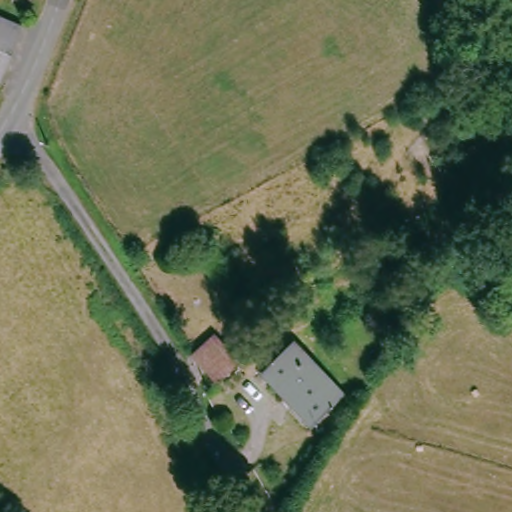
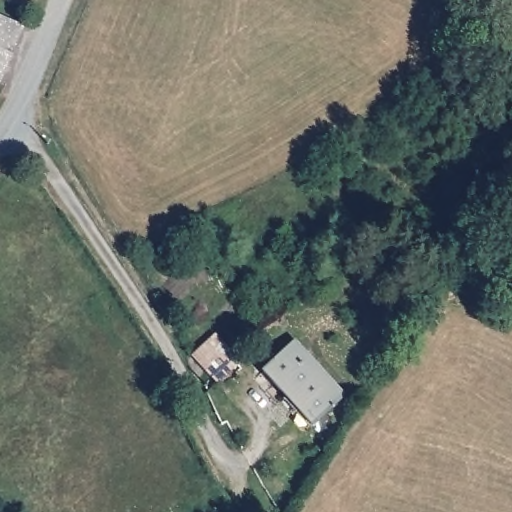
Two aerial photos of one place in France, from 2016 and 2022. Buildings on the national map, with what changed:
unchanged [(17,27),(0,73),(0,17),(17,27)]
unchanged [(238,360),(213,383),(189,357),(213,334),(238,360)]
unchanged [(341,394),(312,423),(262,372),(290,341),(341,394)]

